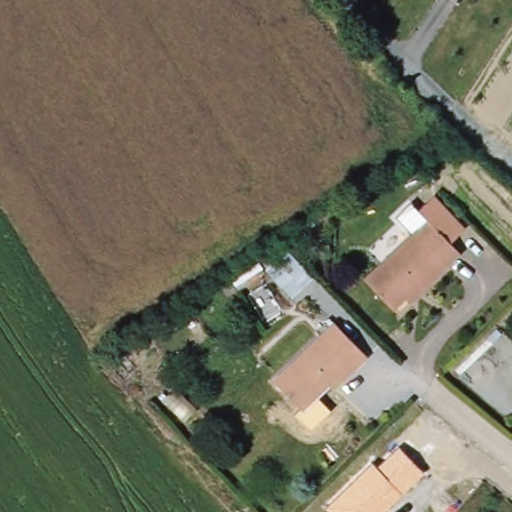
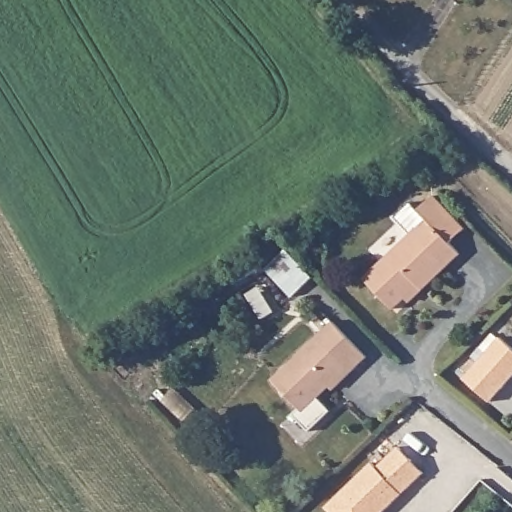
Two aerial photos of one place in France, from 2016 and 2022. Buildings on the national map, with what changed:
unchanged [(406,297),(394,309),(364,278),(426,219),(418,210),(433,195),(465,229),(451,242),(461,253),(423,289),(410,302),(406,297)]
unchanged [(313,277),(292,297),(266,268),(287,249),(313,277)]
unchanged [(330,386),(303,412),(272,380),(334,321),(367,357),(351,372),(333,389),(330,386)]
new [(512,350),(512,377),(491,403),(464,381),(499,339),(512,350)]
unchanged [(327,508),(372,461),(377,466),(399,446),(425,472),(385,512),(331,512),(327,508)]

